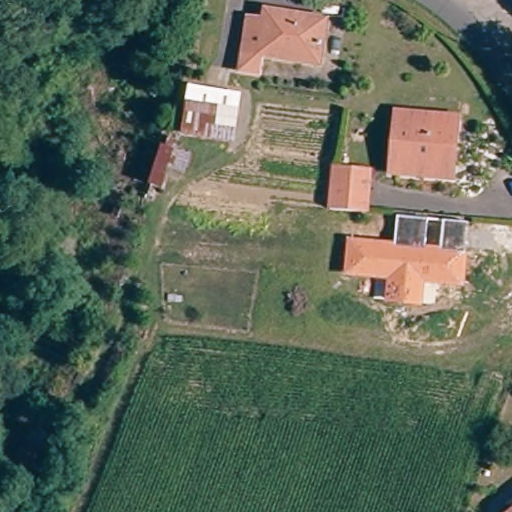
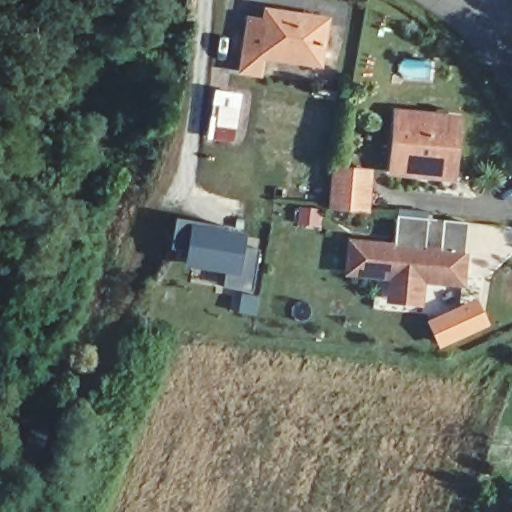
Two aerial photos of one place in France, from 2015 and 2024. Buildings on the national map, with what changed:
unchanged [(274,80),(257,79),(261,29),(274,30),(275,18),(315,22),(314,30),(338,32),(337,48),(333,48),(331,66),(276,61),(274,80)]
unchanged [(243,89),(236,145),(175,137),(186,81),(243,89)]
unchanged [(458,120),(454,179),(395,175),(399,116),(458,120)]
unchanged [(195,149),(189,174),(172,166),(167,194),(145,188),(161,139),(195,149)]
unchanged [(321,214),(322,178),(323,176),(324,172),(363,174),(363,182),(360,217),(321,214)]
unchanged [(464,287),(424,283),(422,306),(385,302),(387,279),(343,275),(347,237),(394,242),(397,215),(427,218),(425,245),(440,247),(443,219),(468,222),(464,287)]
new [(174,217),(226,227),(259,237),(250,294),(259,296),(255,316),(236,312),(240,291),(221,287),(223,272),(183,266),(185,253),(168,249),(174,217)]
new [(477,297),(489,325),(438,348),(425,320),(477,297)]

